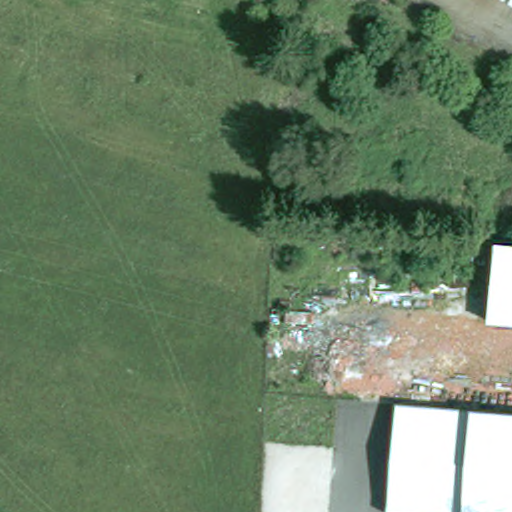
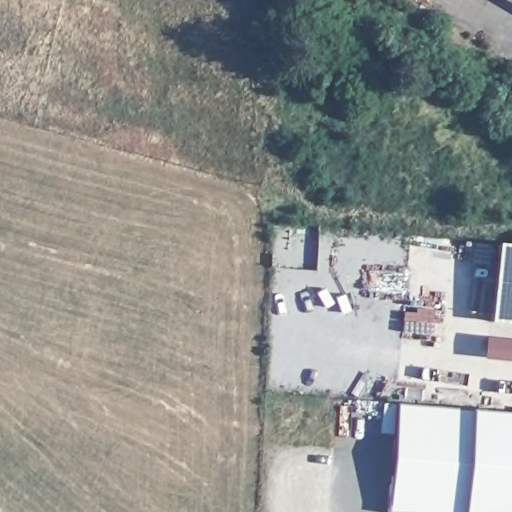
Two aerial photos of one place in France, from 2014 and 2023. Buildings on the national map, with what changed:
unchanged [(507,0),(512,0),(512,3),(507,0)]
unchanged [(486,325),(492,249),(512,250),(512,327),(486,325)]
unchanged [(427,512),(387,507),(395,406),(467,410),(512,413),(512,512),(427,512)]

